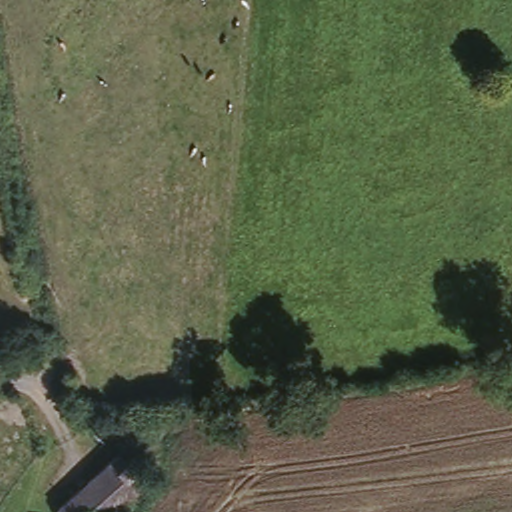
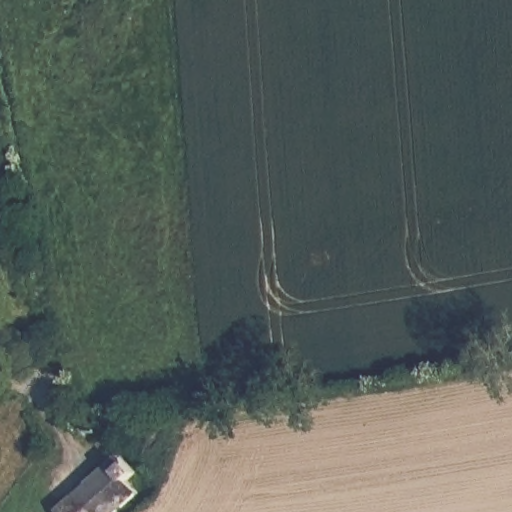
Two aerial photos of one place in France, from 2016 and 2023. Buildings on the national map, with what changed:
unchanged [(116,455),(133,470),(126,477),(136,487),(112,512),(67,512),(116,455)]

